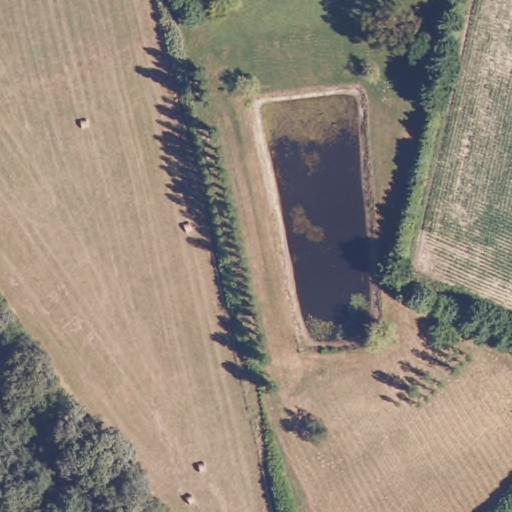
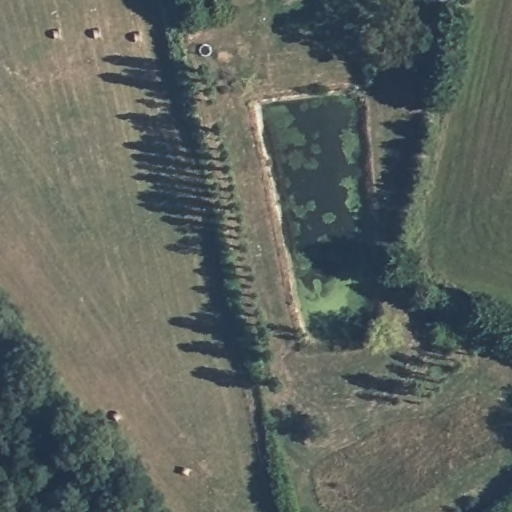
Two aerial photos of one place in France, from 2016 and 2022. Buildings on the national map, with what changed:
[]

